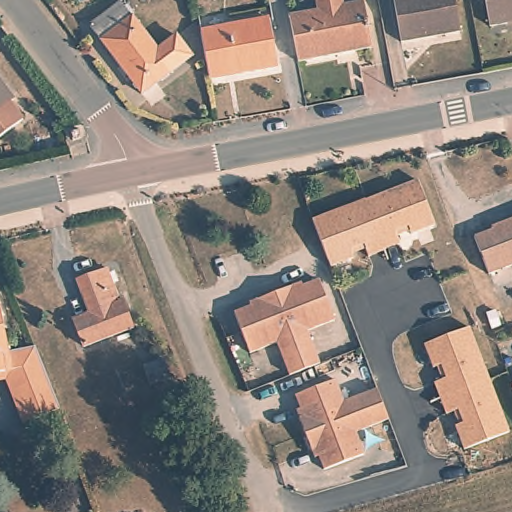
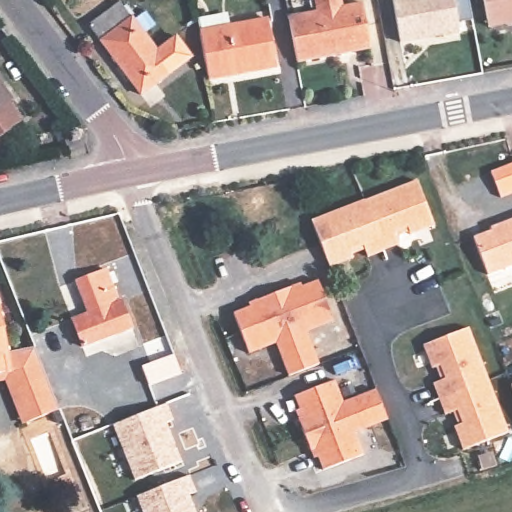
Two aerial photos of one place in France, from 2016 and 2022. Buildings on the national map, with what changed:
unchanged [(317,13),(315,0),(342,0),(343,8),(363,5),(371,47),(298,60),(290,17),(317,13)]
unchanged [(461,25),(405,36),(398,0),(456,0),(461,25)]
unchanged [(492,20),(488,0),(512,0),(512,16),(492,20)]
unchanged [(157,46),(173,34),(191,54),(144,92),(90,30),(122,5),(157,46)]
unchanged [(271,17),(278,61),(209,74),(200,30),(271,17)]
unchanged [(7,105),(19,120),(0,135),(0,87),(11,101),(7,105)]
unchanged [(317,216),(366,194),(369,195),(420,176),(437,221),(415,230),(412,221),(399,226),(405,237),(372,251),(367,240),(353,245),(357,252),(334,261),(317,216)]
unchanged [(497,230),(499,225),(512,219),(512,263),(493,272),(477,237),(497,230)]
unchanged [(87,349),(78,327),(92,320),(75,280),(105,268),(116,301),(121,299),(134,328),(87,349)]
unchanged [(302,286),(323,278),(338,314),(311,324),(322,356),(296,366),(283,335),(256,345),(242,309),(268,299),(266,295),(301,282),(302,286)]
unchanged [(3,380),(0,381),(0,292),(1,292),(14,354),(37,347),(62,412),(24,426),(3,380)]
unchanged [(512,421),(512,431),(472,447),(462,423),(470,422),(465,407),(453,412),(441,381),(452,376),(447,363),(440,366),(431,342),(475,325),(512,421)]
unchanged [(162,347),(171,365),(158,369),(152,351),(162,347)]
unchanged [(382,393),(392,420),(359,432),(368,455),(323,472),(315,451),(311,452),(298,420),(302,418),(295,397),(339,380),(347,402),(381,390),(382,393)]
unchanged [(511,383),(512,383),(512,386),(511,383)]
new [(167,402),(174,419),(167,422),(183,463),(135,482),(114,425),(167,402)]
new [(196,490),(190,493),(198,512),(143,512),(137,496),(189,474),(196,490)]

